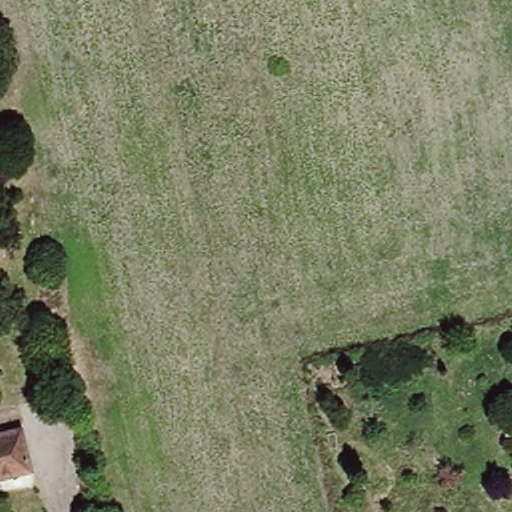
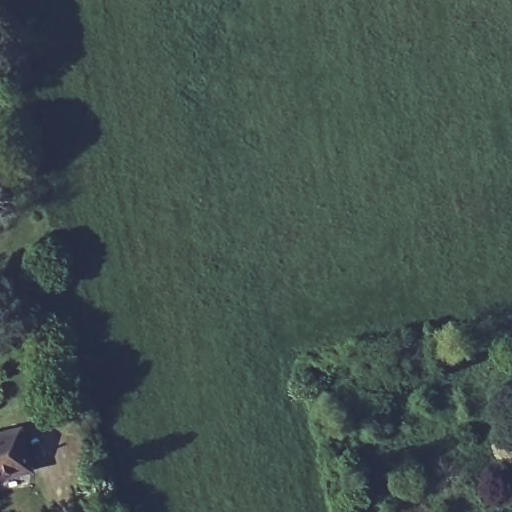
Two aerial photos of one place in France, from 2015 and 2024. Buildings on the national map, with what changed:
unchanged [(30,474),(0,479),(0,437),(22,432),(30,474)]

